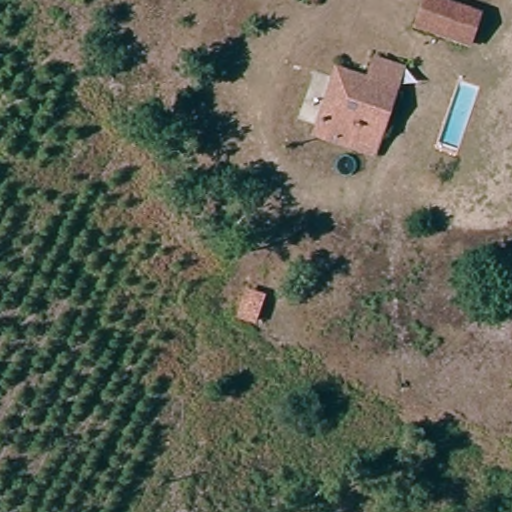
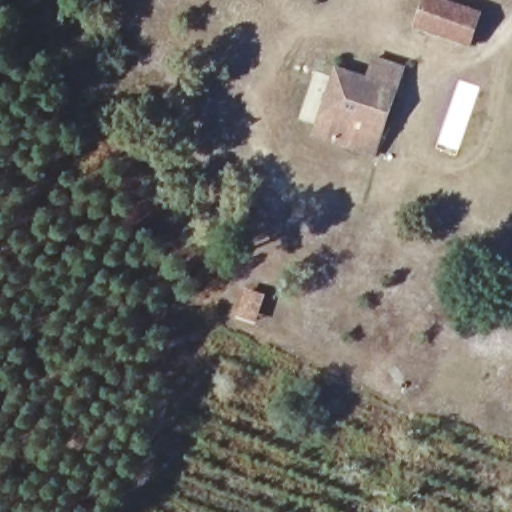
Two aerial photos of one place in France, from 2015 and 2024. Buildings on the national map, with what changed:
unchanged [(287,0),(318,0),(316,6),(287,0)]
unchanged [(467,45),(421,29),(431,2),(475,16),(475,22),(467,45)]
unchanged [(395,91),(373,159),(309,140),(332,74),(395,91)]
unchanged [(267,299),(255,334),(227,326),(242,290),(267,299)]

